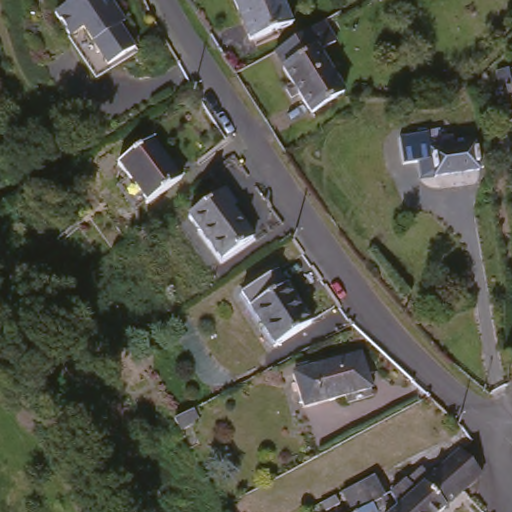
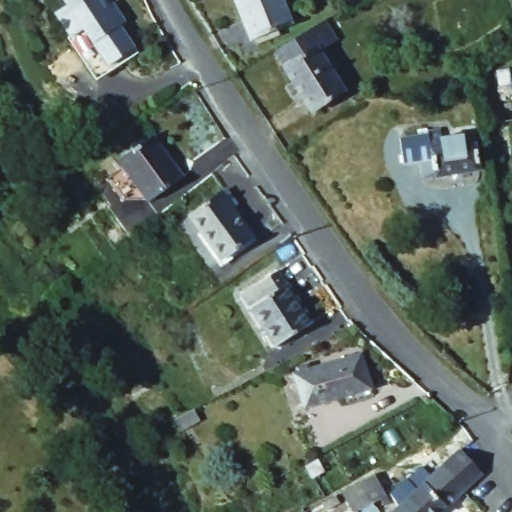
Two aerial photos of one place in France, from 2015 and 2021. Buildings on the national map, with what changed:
unchanged [(122,34),(135,50),(107,69),(92,48),(81,34),(69,41),(52,17),(64,9),(58,0),(93,0),(102,11),(110,5),(125,25),(119,29),(122,34)]
unchanged [(255,38),(238,0),(287,0),(295,20),(255,38)]
unchanged [(288,80),(297,75),(290,62),(290,59),(282,44),(302,33),(309,25),(328,12),(341,32),(333,37),(323,42),(348,85),(315,105),(302,85),(294,90),(288,80)]
unchanged [(512,64),(512,81),(504,82),(501,66),(512,64)]
unchanged [(490,79),(493,85),(485,89),(482,82),(490,79)]
unchanged [(438,126),(440,135),(442,135),(445,145),(455,144),(454,139),(458,139),(459,143),(475,141),(477,169),(433,175),(427,128),(438,126)]
unchanged [(153,138),(184,177),(148,202),(117,162),(153,138)]
unchanged [(225,189),(235,204),(232,206),(252,236),(220,260),(188,216),(225,189)]
unchanged [(278,269),(312,322),(275,346),(242,294),(278,269)]
unchanged [(366,353),(375,387),(308,407),(298,373),(366,353)]
unchanged [(398,502),(392,487),(408,473),(417,484),(463,443),(467,448),(485,467),(463,485),(434,512),(386,512),(398,502)]
unchanged [(344,485),(375,468),(390,497),(384,500),(382,494),(373,498),(380,510),(377,512),(361,512),(355,506),(344,485)]
unchanged [(337,490),(341,497),(328,504),(325,496),(337,490)]
unchanged [(355,506),(361,512),(346,512),(355,506)]

